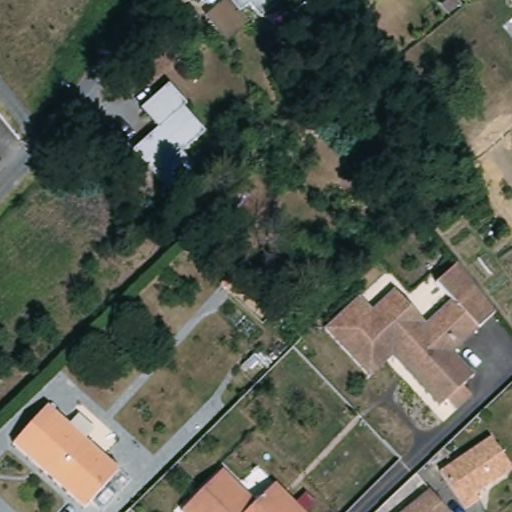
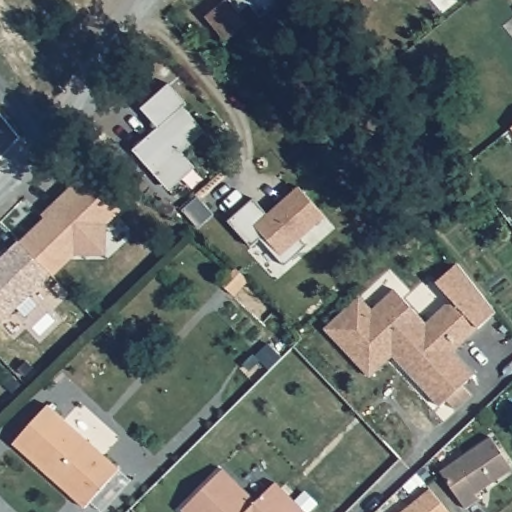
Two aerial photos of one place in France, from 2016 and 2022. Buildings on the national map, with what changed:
unchanged [(249,3),(239,11),(231,0),(281,0),(260,17),(249,3)]
unchanged [(132,147),(157,127),(141,107),(170,83),(187,104),(183,107),(204,132),(182,152),(194,167),(168,189),(132,147)]
new [(512,126),(512,128),(511,127),(512,126)]
new [(50,211),(47,207),(78,177),(129,197),(103,222),(103,253),(73,251),(50,272),(19,240),(50,211)]
new [(259,237),(250,245),(229,220),(253,199),(267,214),(297,186),(325,217),(299,237),(306,245),(284,265),(259,237)]
new [(6,252),(18,239),(19,240),(50,272),(54,276),(2,326),(0,324),(0,257),(6,252)]
unchanged [(500,312),(463,347),(459,347),(456,350),(480,375),(468,386),(477,396),(461,410),(452,401),(446,407),(412,372),(413,366),(408,360),(402,362),(397,356),(375,377),(330,330),(364,297),(376,311),(399,290),(431,323),(456,300),(440,282),(461,262),(500,312)]
unchanged [(119,470),(85,507),(44,470),(14,442),(17,438),(47,405),(119,470)]
unchanged [(484,499),(470,508),(445,472),(496,437),(512,461),(512,472),(480,493),(484,499)]
unchanged [(186,510),(227,468),(261,502),(280,482),(310,512),(189,512),(186,510)]
unchanged [(430,488),(449,512),(401,512),(430,488)]

